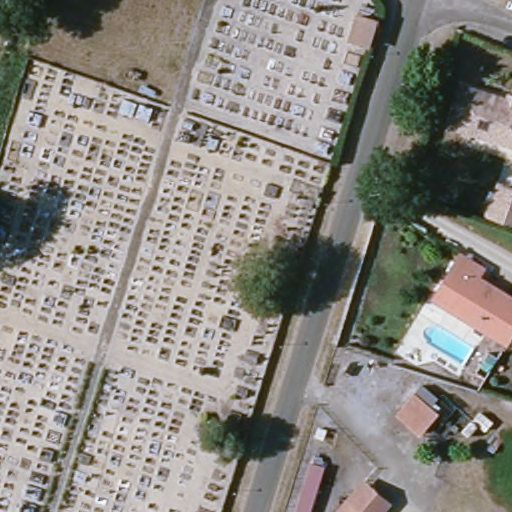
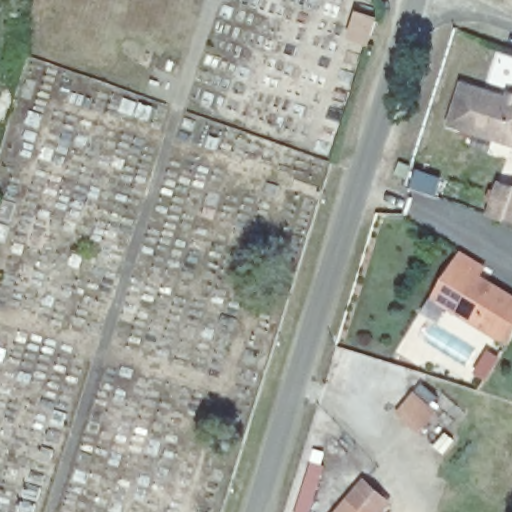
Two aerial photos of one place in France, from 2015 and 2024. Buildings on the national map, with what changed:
unchanged [(371,50),(353,44),(361,19),(379,25),(371,50)]
unchanged [(468,131),(480,92),(512,103),(512,146),(468,131)]
unchanged [(396,182),(385,178),(387,170),(398,174),(396,182)]
unchanged [(503,220),(507,207),(499,205),(502,193),(511,196),(512,193),(512,223),(503,220)]
unchanged [(462,253),(478,263),(473,270),(512,295),(512,335),(508,341),(507,341),(450,303),(435,294),(450,272),(458,260),(462,253)]
unchanged [(395,416),(427,383),(441,395),(431,401),(440,411),(422,438),(395,416)]
unchanged [(379,512),(338,512),(355,493),(364,482),(387,503),(380,510),(379,512)]

